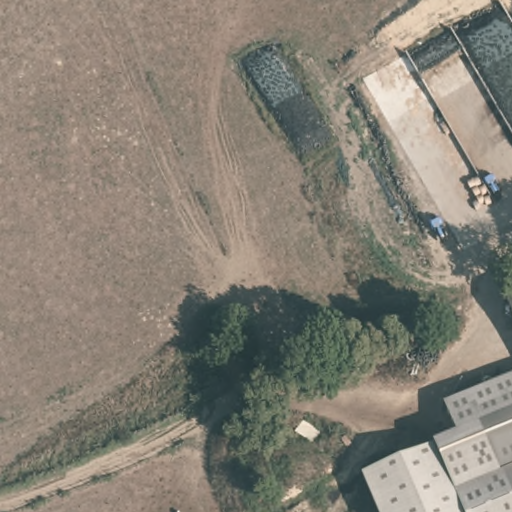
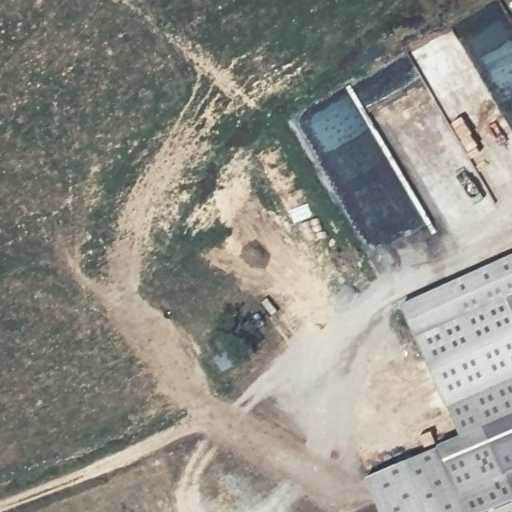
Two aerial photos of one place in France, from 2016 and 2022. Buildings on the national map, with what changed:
new [(506,290),(512,303),(512,379),(448,405),(461,437),(459,438),(398,307),(512,254),(512,288),(506,290)]
unchanged [(506,290),(512,288),(512,303),(506,290)]
unchanged [(369,475),(461,437),(448,405),(512,379),(512,512),(384,512),(369,475)]

